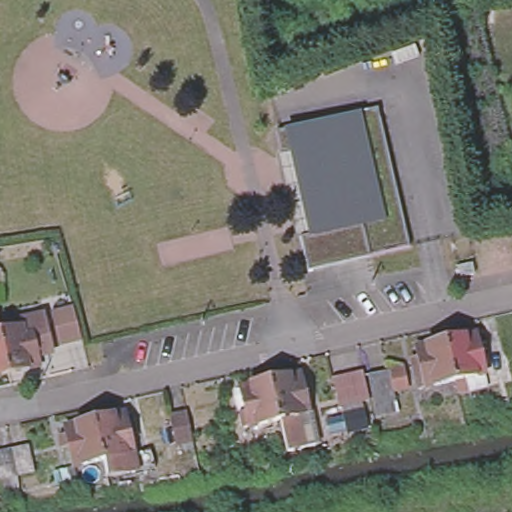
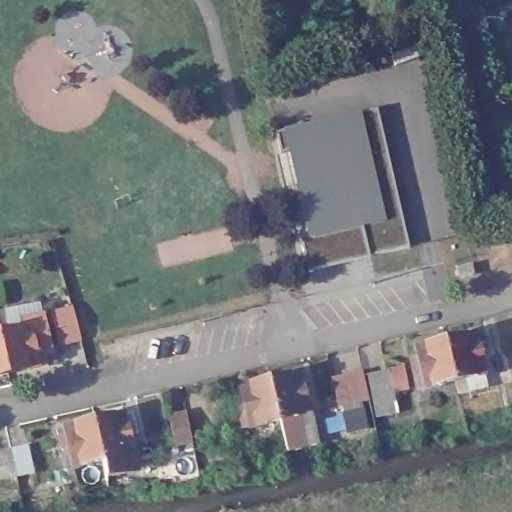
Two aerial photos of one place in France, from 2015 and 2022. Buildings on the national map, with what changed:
unchanged [(375,110),(407,249),(310,272),(310,273),(306,274),(297,240),(302,239),(303,240),(314,237),(294,152),(278,156),(273,135),(375,110)]
unchanged [(470,267),(472,277),(459,280),(456,270),(470,267)]
unchanged [(80,335),(59,340),(50,308),(71,303),(80,335)]
unchanged [(21,324),(20,317),(42,312),(50,351),(36,355),(37,362),(10,368),(0,329),(21,324)]
unchanged [(0,370),(0,329),(10,368),(0,370)]
unchanged [(480,330),(489,370),(460,376),(451,337),(480,330)]
unchanged [(418,371),(426,369),(425,361),(416,363),(412,348),(421,346),(420,344),(451,337),(460,376),(430,383),(421,385),(418,371)]
unchanged [(249,423),(239,383),(269,377),(299,370),(307,409),(315,441),(301,444),(287,447),(279,416),(249,423)]
unchanged [(379,419),(376,407),(377,407),(371,376),(392,371),(399,403),(392,404),(395,415),(379,419)]
unchanged [(375,400),(344,407),(337,379),(369,372),(375,400)]
unchanged [(117,469),(114,451),(83,458),(78,437),(70,439),(67,429),(76,427),(74,418),(104,412),(133,405),(142,445),(146,462),(117,469)]
unchanged [(191,442),(175,446),(169,417),(185,414),(191,442)]
unchanged [(10,452),(27,448),(32,474),(15,478),(0,481),(0,454),(10,452)]

